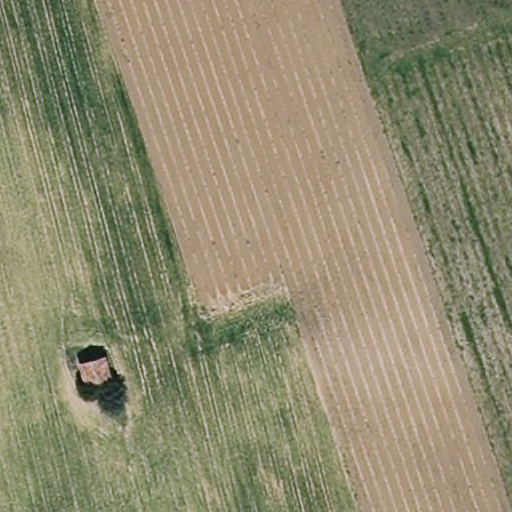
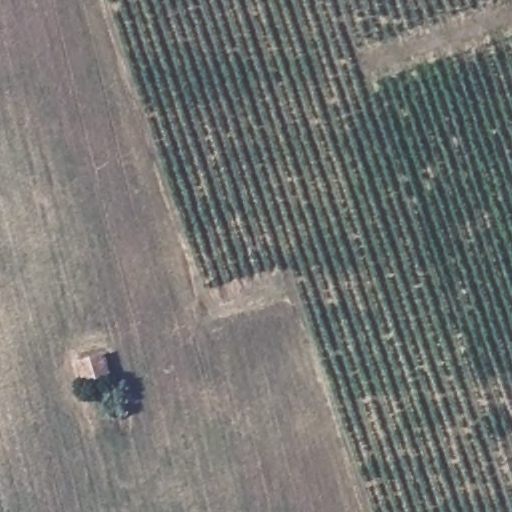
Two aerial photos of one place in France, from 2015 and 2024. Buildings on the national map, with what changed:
unchanged [(79,361),(109,355),(115,376),(87,385),(79,361)]

